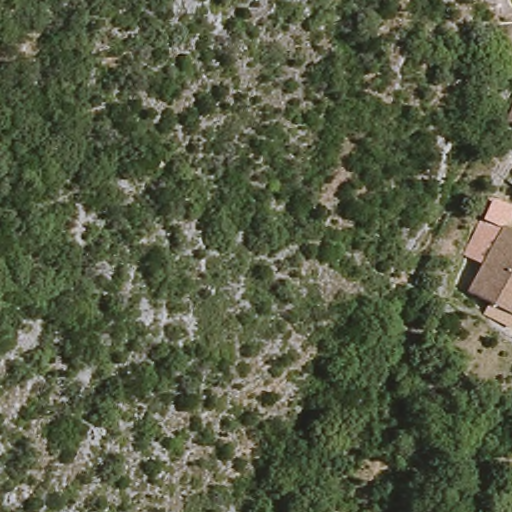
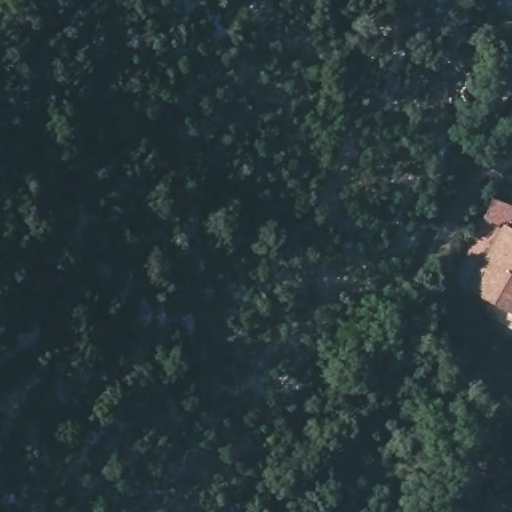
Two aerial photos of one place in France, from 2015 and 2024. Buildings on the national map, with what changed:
unchanged [(479,296),(512,235),(512,313),(479,296)]

